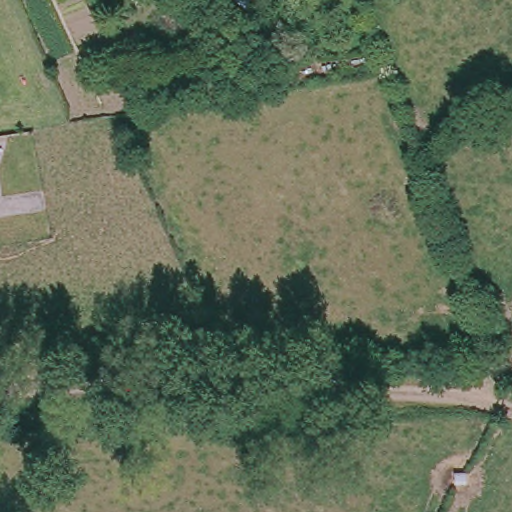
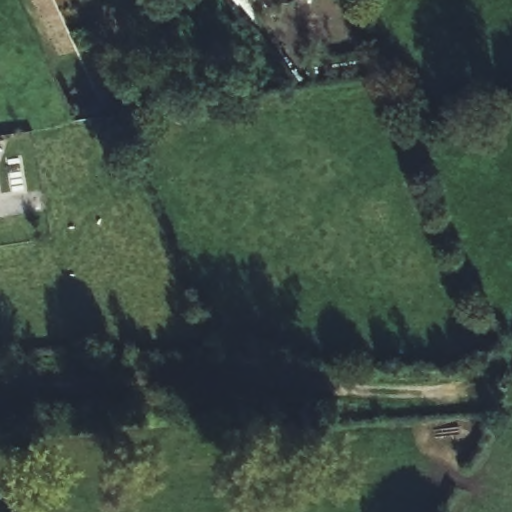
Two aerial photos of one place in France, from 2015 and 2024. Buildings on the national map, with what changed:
unchanged [(268,8),(253,21),(234,0),(261,0),(268,8)]

